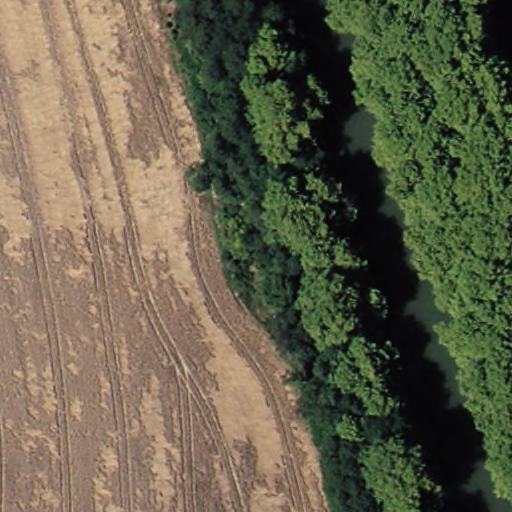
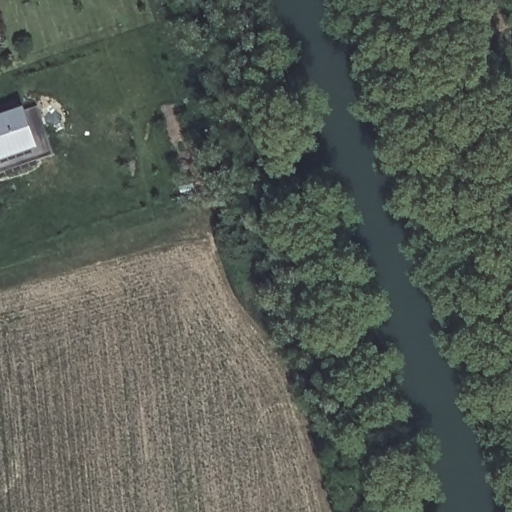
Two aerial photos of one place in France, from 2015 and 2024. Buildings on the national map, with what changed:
new [(22,111),(34,144),(0,156),(0,119),(22,111)]

